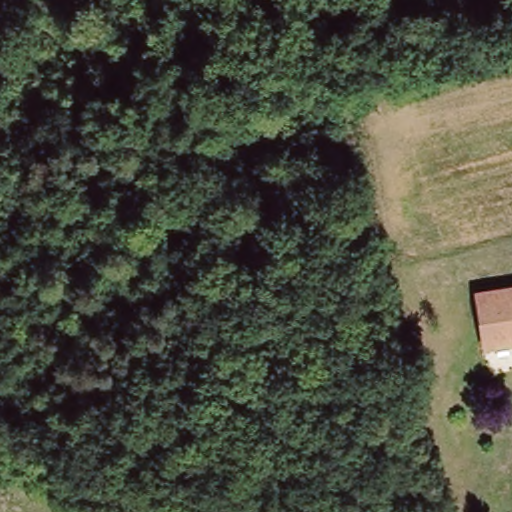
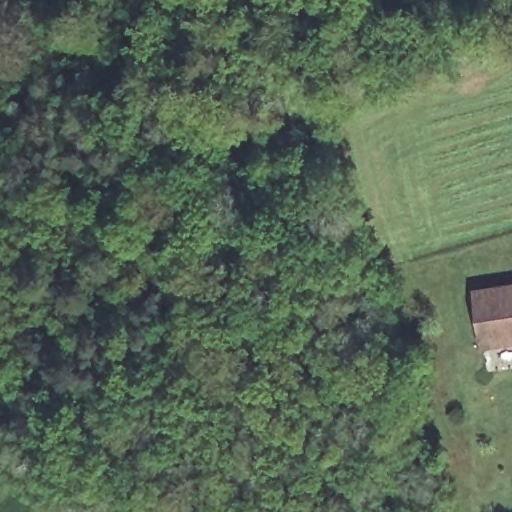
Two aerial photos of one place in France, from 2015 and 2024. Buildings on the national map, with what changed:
unchanged [(486,290),(512,285),(512,344),(496,347),(486,290)]

